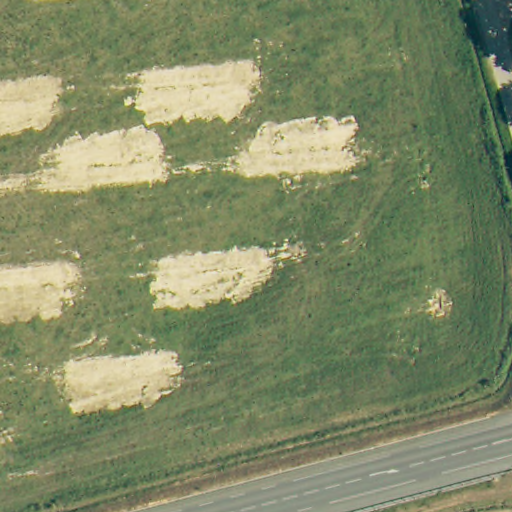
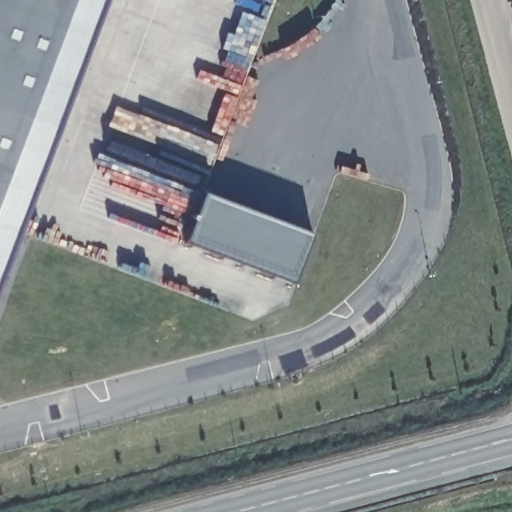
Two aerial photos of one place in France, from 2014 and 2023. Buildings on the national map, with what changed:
new [(102,0),(0,270),(0,0),(102,0)]
new [(291,284),(187,244),(205,193),(312,233),(291,284)]

